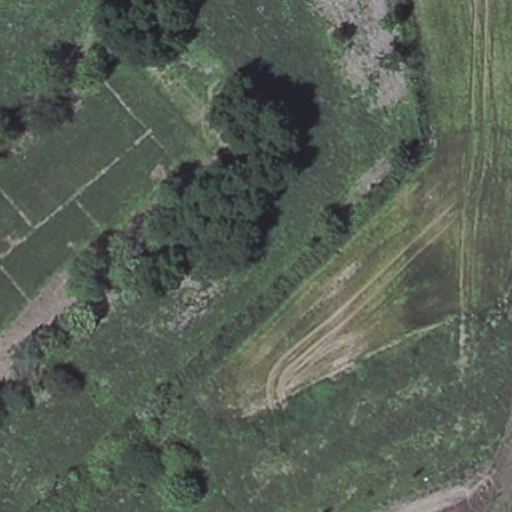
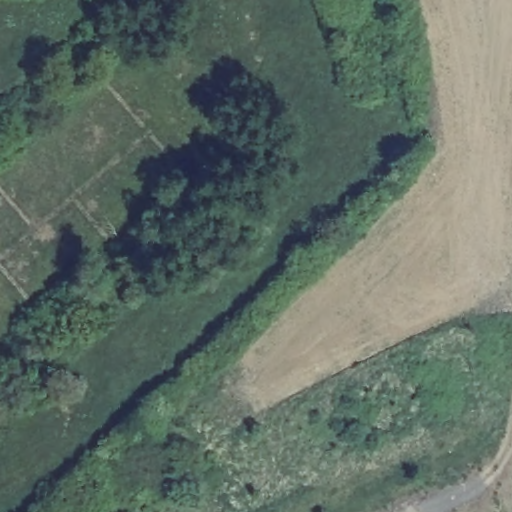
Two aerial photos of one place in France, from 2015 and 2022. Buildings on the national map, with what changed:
[]

